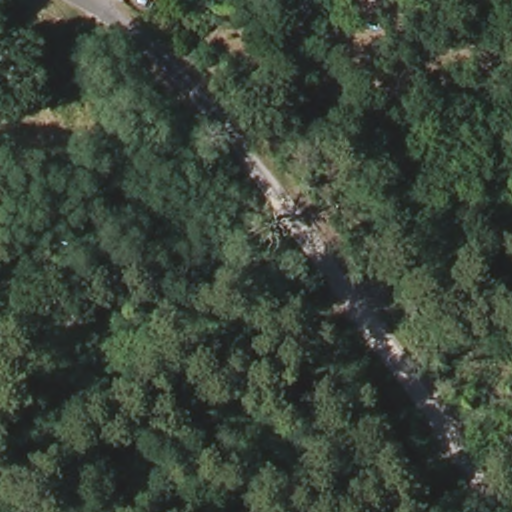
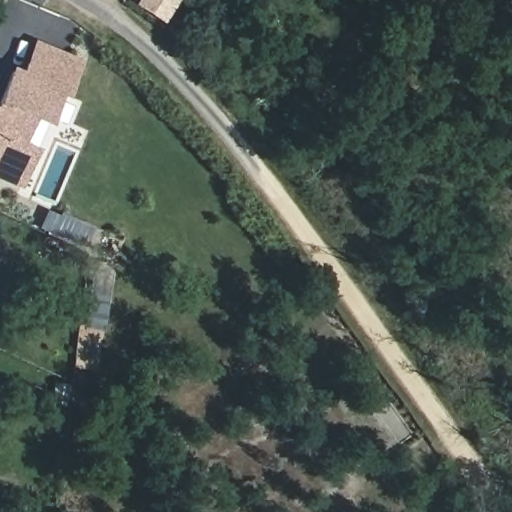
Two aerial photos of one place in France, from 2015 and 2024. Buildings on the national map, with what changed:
new [(179,0),(165,24),(135,5),(138,0),(179,0)]
new [(71,96),(65,95),(50,126),(35,119),(24,143),(40,149),(23,189),(0,179),(0,97),(11,67),(21,71),(34,40),(85,61),(71,96)]
demolished [(97,168),(131,187),(121,201),(91,180),(97,168)]

